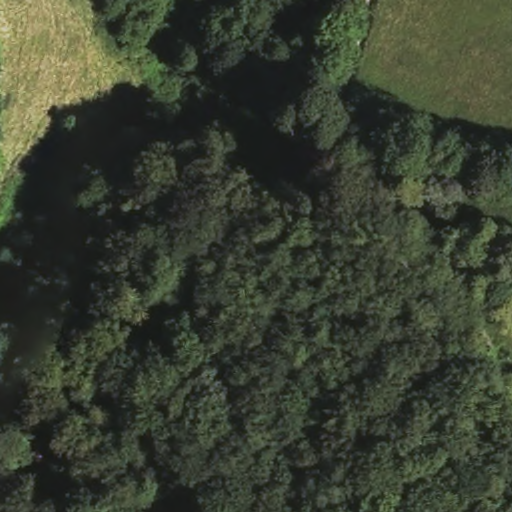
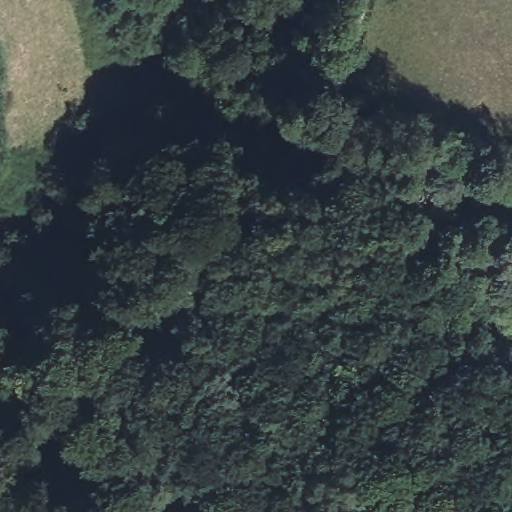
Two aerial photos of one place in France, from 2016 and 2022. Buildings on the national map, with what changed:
[]

